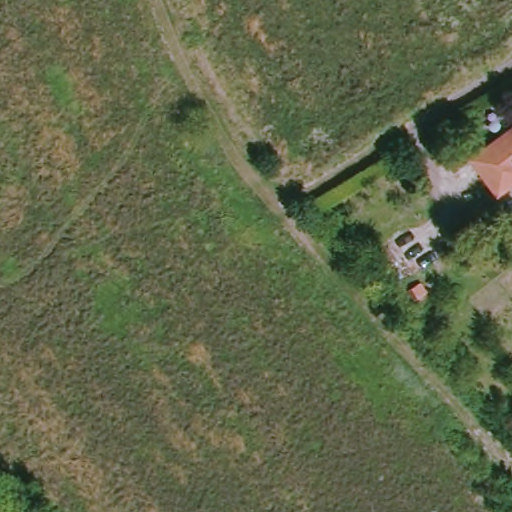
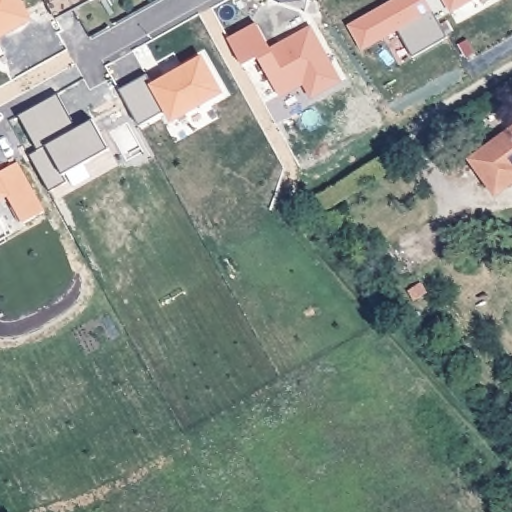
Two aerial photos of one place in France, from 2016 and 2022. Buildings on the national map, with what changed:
new [(0,0),(21,0),(32,21),(0,37),(0,0)]
new [(444,0),(472,0),(452,12),(444,0)]
new [(435,31),(370,65),(352,31),(415,2),(435,31)]
new [(252,25),(267,53),(315,24),(339,66),(326,74),(335,92),(294,117),(270,76),(262,79),(250,56),(235,61),(223,39),(252,25)]
new [(5,55),(0,58),(0,46),(1,47),(5,55)]
new [(225,89),(164,135),(144,100),(206,64),(225,89)]
new [(37,151),(18,116),(57,95),(72,121),(70,123),(74,129),(92,120),(110,151),(64,176),(68,184),(50,194),(30,155),(37,151)]
unchanged [(497,189),(473,155),(512,128),(512,179),(497,189)]
new [(45,213),(26,224),(27,227),(12,234),(3,219),(0,221),(0,173),(16,164),(45,213)]

